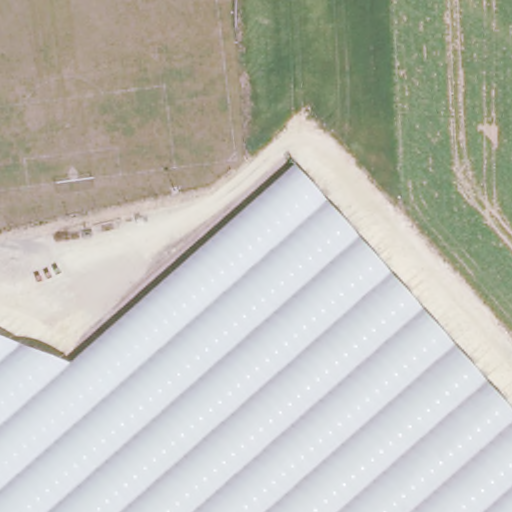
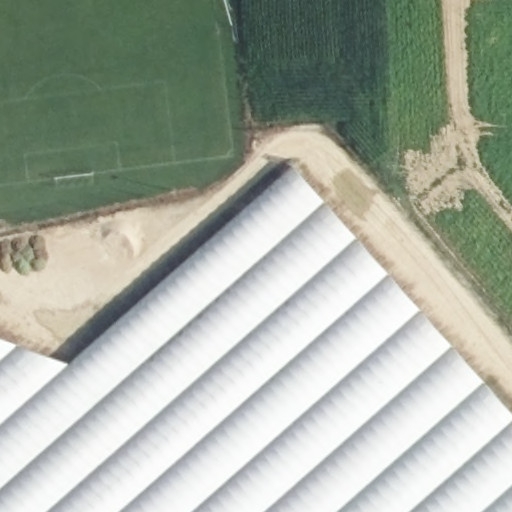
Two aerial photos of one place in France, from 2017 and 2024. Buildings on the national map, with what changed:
unchanged [(294,162),(512,410),(512,512),(0,512),(0,336),(68,362),(294,162)]

